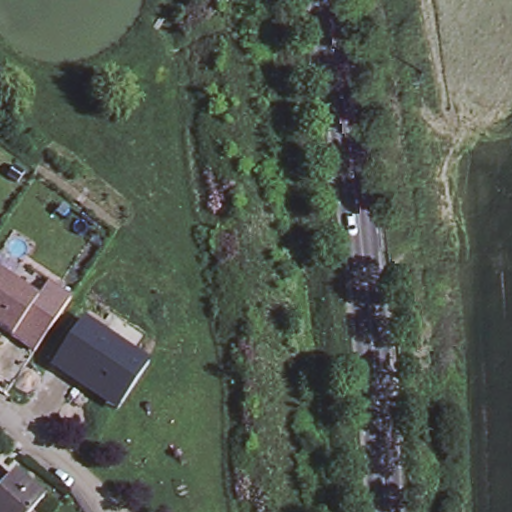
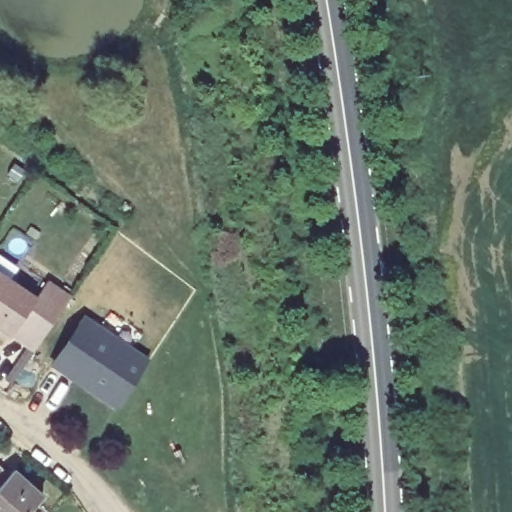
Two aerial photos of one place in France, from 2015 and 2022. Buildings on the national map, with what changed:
unchanged [(10,335),(0,328),(0,274),(35,297),(10,335)]
unchanged [(35,297),(47,280),(70,296),(32,350),(10,335),(35,297)]
unchanged [(119,411),(50,369),(84,317),(150,361),(119,411)]
unchanged [(0,475),(0,468),(4,471),(0,475)]
unchanged [(42,497),(29,512),(0,512),(0,488),(14,472),(42,497)]

